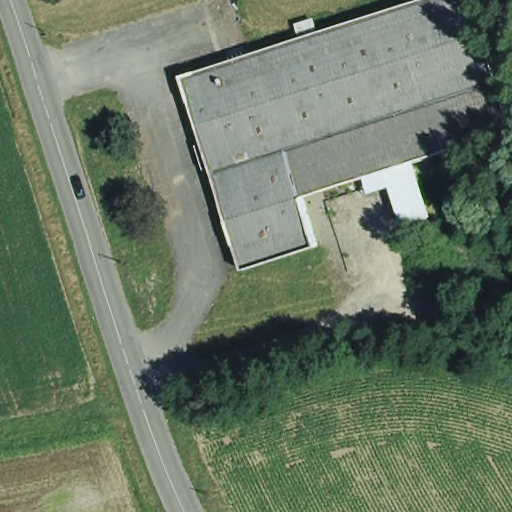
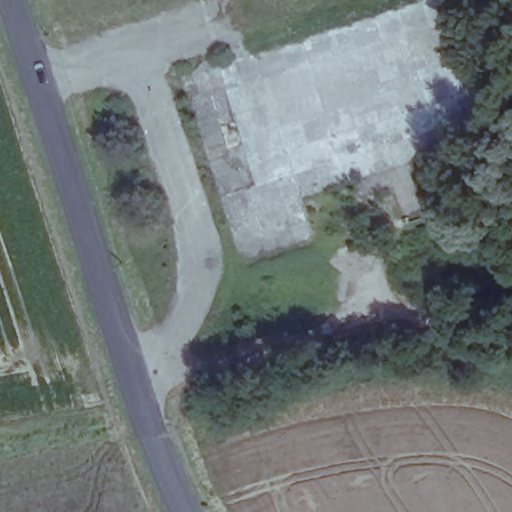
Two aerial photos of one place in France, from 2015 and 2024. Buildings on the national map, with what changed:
demolished [(320,245),(246,269),(184,76),(421,0),(476,0),(503,81),(290,150),(305,197),(320,245)]
demolished [(362,178),(305,197),(290,150),(503,81),(512,110),(512,130),(414,162),(419,176),(367,193),(362,178)]

